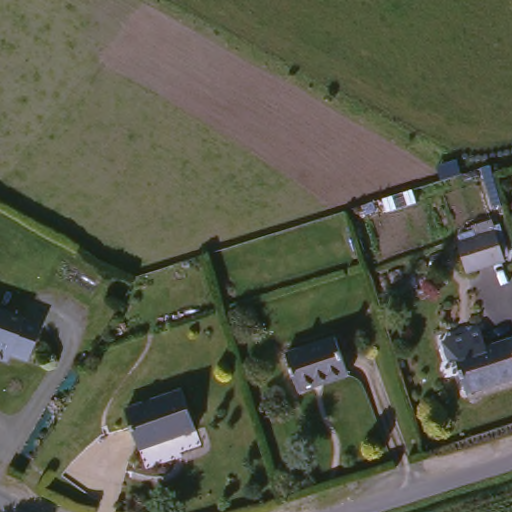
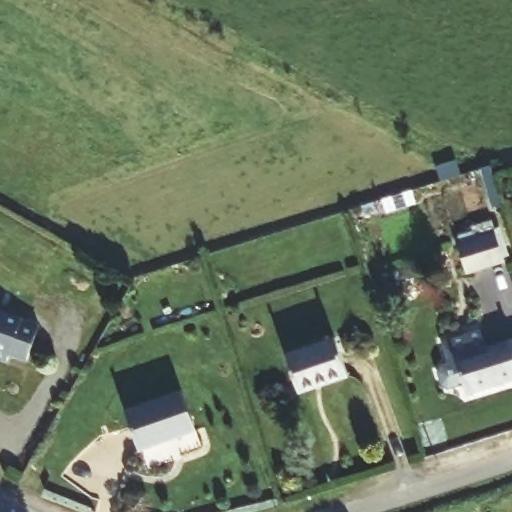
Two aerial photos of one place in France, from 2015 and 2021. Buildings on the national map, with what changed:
unchanged [(488,229),(501,266),(462,278),(454,256),(468,251),(464,236),(488,229)]
unchanged [(24,366),(6,361),(1,368),(0,368),(0,317),(39,330),(24,366)]
unchanged [(453,360),(512,343),(512,382),(466,394),(453,360)]
unchanged [(289,359),(333,344),(344,381),(299,395),(289,359)]
unchanged [(176,400),(191,438),(133,454),(123,414),(176,400)]

